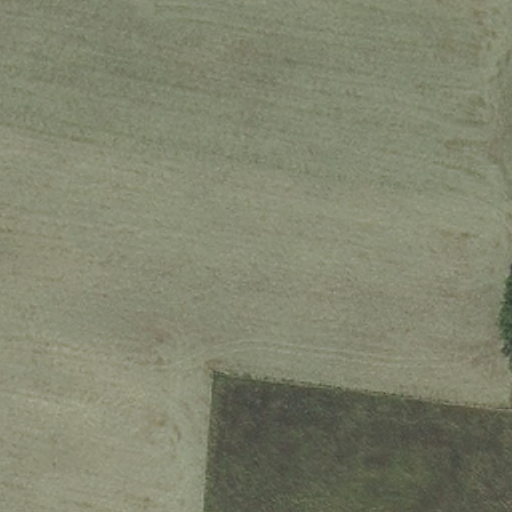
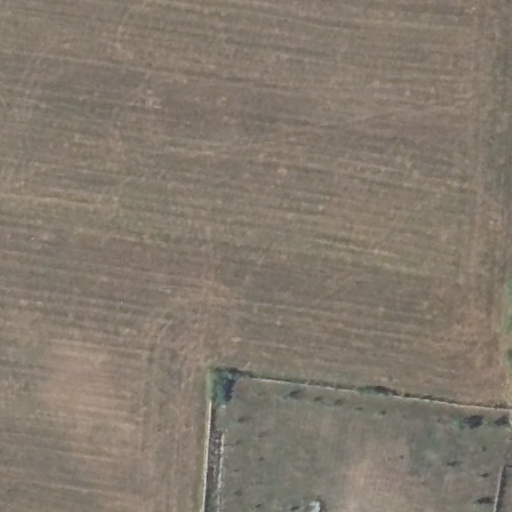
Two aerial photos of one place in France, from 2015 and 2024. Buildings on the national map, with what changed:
[]

